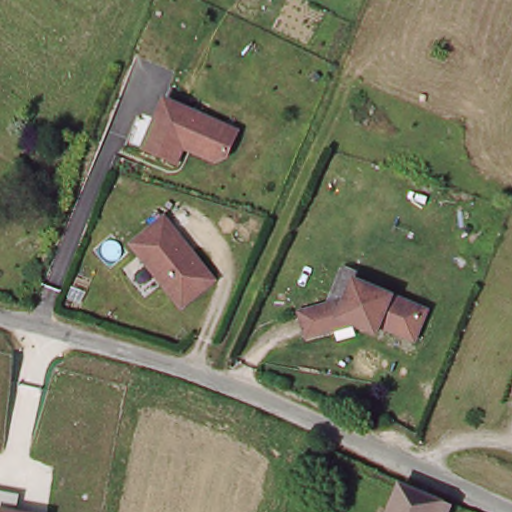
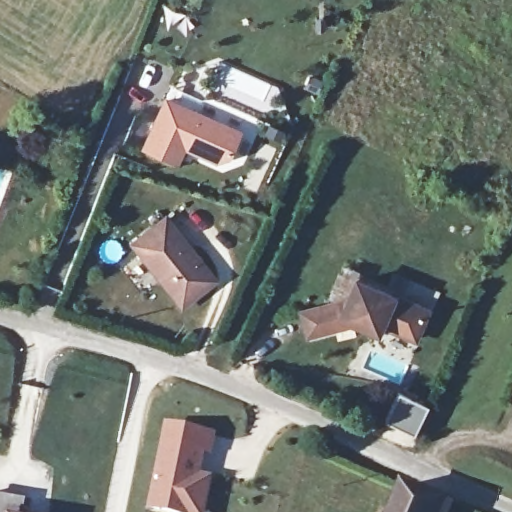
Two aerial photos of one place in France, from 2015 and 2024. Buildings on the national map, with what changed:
unchanged [(241,127),(231,153),(221,157),(199,148),(197,144),(192,142),(191,145),(187,143),(181,159),(147,146),(167,97),(241,127)]
unchanged [(166,216),(216,277),(183,304),(132,243),(166,216)]
unchanged [(356,289),(429,318),(418,346),(382,333),(379,341),(342,326),(335,329),(336,339),(311,346),(304,322),(349,309),(356,289)]
new [(397,393),(427,406),(412,435),(384,421),(397,393)]
new [(212,455),(205,453),(201,474),(212,478),(205,512),(162,512),(147,509),(164,422),(216,434),(212,455)]
unchanged [(439,512),(391,512),(402,487),(442,505),(439,512)]
unchanged [(17,512),(0,512),(0,491),(20,495),(17,512)]

